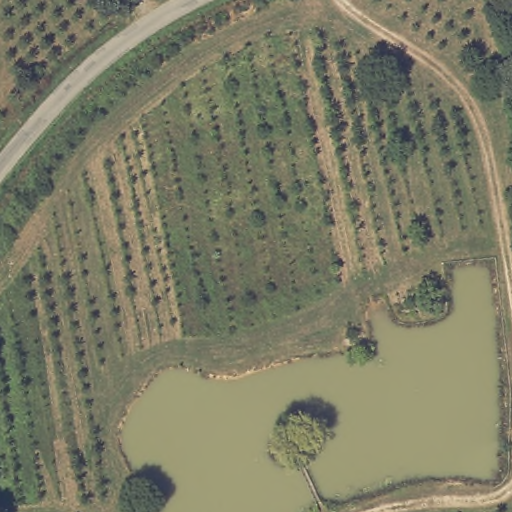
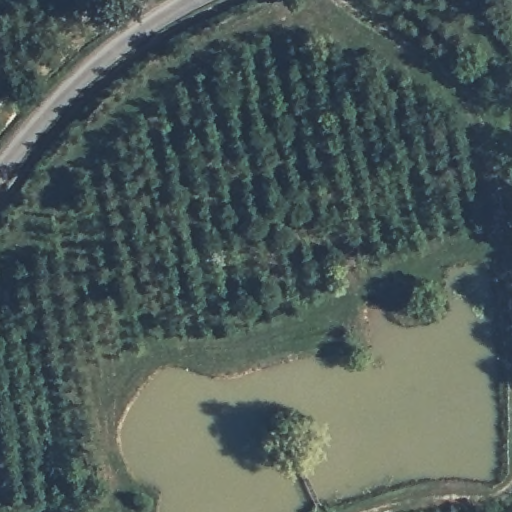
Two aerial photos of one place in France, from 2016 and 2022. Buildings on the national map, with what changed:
[]

